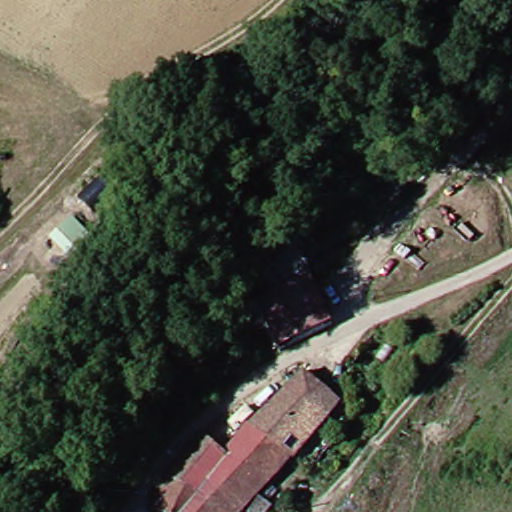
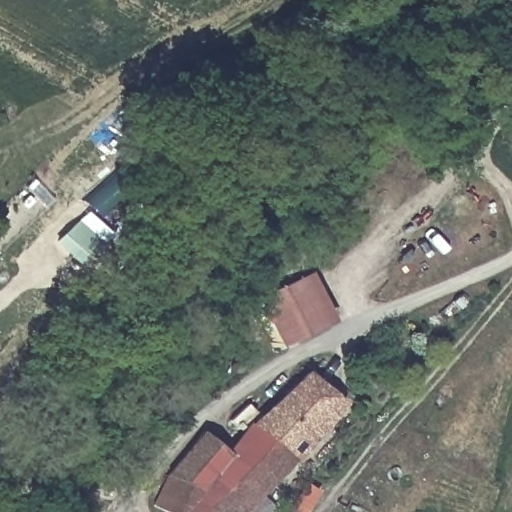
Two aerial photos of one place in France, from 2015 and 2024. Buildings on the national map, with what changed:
unchanged [(249,301),(260,296),(305,277),(326,327),(280,346),(271,351),(249,301)]
unchanged [(336,407),(292,461),(288,458),(241,512),(163,512),(150,503),(165,466),(206,428),(228,449),(298,371),(336,407)]

